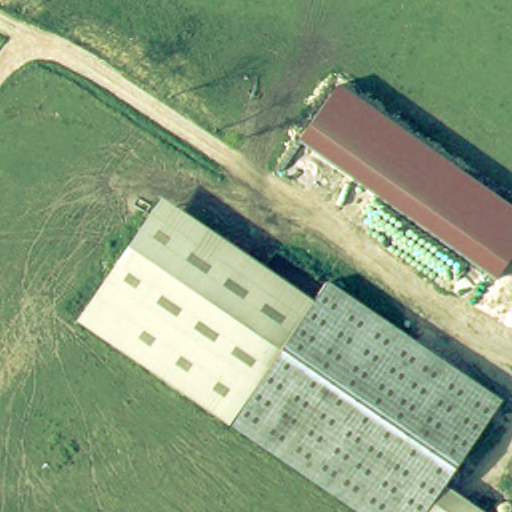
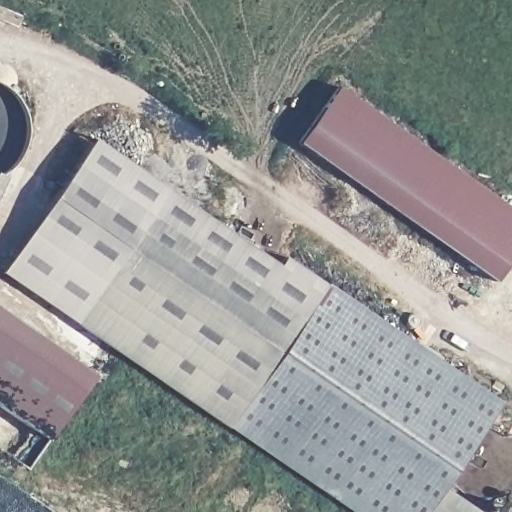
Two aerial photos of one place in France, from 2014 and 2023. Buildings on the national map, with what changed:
unchanged [(512,212),(512,260),(496,283),(297,142),(335,86),(512,212)]
new [(281,258),(325,288),(312,306),(159,203),(149,219),(77,326),(0,273),(0,270),(92,137),(277,263),(281,258)]
new [(0,185),(0,173),(4,175),(0,185)]
unchanged [(231,428),(230,430),(76,327),(149,219),(159,203),(312,306),(303,320),(231,428)]
unchanged [(312,306),(325,288),(500,403),(433,504),(428,512),(355,512),(231,428),(303,320),(312,306)]
new [(48,441),(0,407),(0,311),(94,375),(48,441)]
unchanged [(433,504),(445,512),(428,512),(433,504)]

